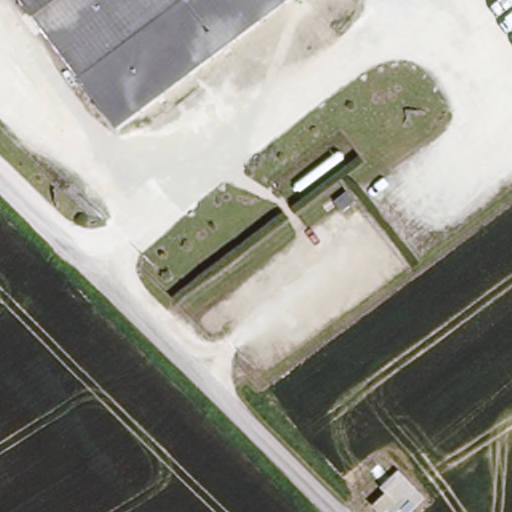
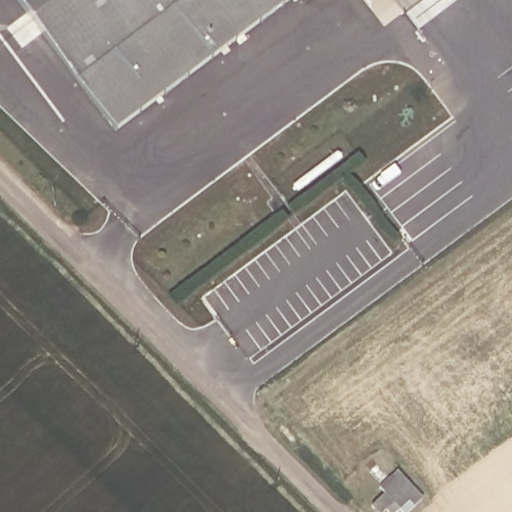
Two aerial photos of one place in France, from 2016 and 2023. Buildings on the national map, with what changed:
unchanged [(8,0),(286,0),(114,134),(8,0)]
unchanged [(421,497),(397,510),(394,512),(378,512),(373,508),(383,493),(378,487),(398,472),(421,497)]

